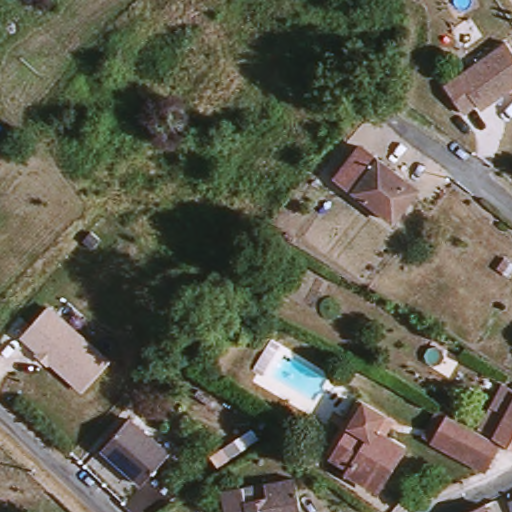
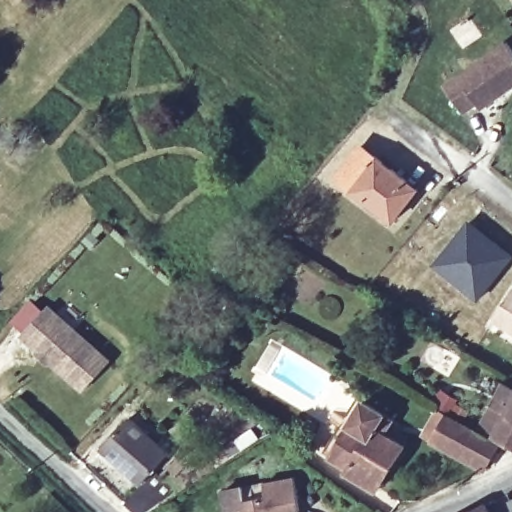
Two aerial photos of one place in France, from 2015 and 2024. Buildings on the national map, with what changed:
unchanged [(507,97),(504,95),(485,107),(483,105),(469,114),(450,87),(512,46),(512,93),(507,97)]
unchanged [(424,189),(401,220),(343,176),(367,145),(424,189)]
new [(467,220),(512,255),(512,258),(478,300),(433,263),(467,220)]
new [(512,293),(512,325),(498,317),(512,293)]
unchanged [(22,337),(50,304),(111,360),(83,392),(22,337)]
unchanged [(510,387),(512,388),(512,446),(510,444),(488,431),(500,407),(510,387)]
unchanged [(392,416),(399,421),(392,433),(413,446),(386,487),(339,458),(373,405),(392,416)]
unchanged [(510,444),(495,469),(443,441),(435,436),(449,410),(458,415),(488,431),(510,444)]
unchanged [(111,447),(139,415),(181,450),(165,468),(153,482),(111,447)]
unchanged [(165,468),(190,490),(156,512),(139,512),(133,506),(153,482),(165,468)]
unchanged [(301,468),(307,500),(309,512),(235,512),(230,482),(301,468)]
unchanged [(471,512),(491,502),(496,512),(471,512)]
unchanged [(512,505),(512,510),(511,506),(512,505)]

